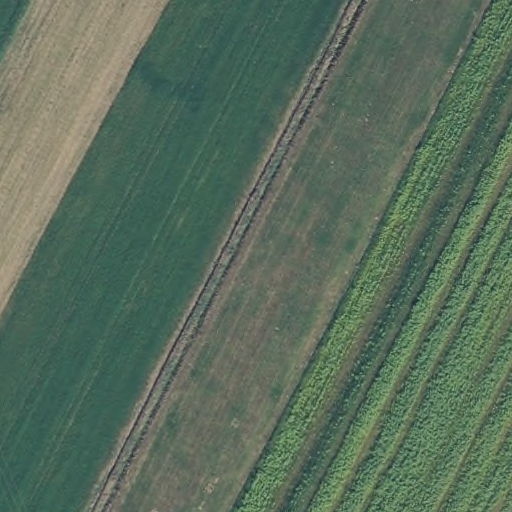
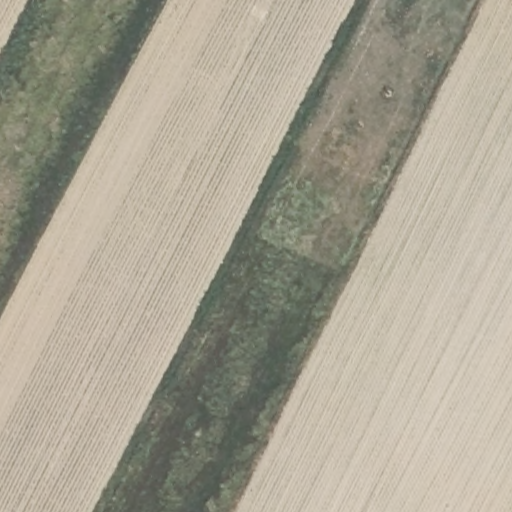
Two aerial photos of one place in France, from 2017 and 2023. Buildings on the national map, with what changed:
[]

